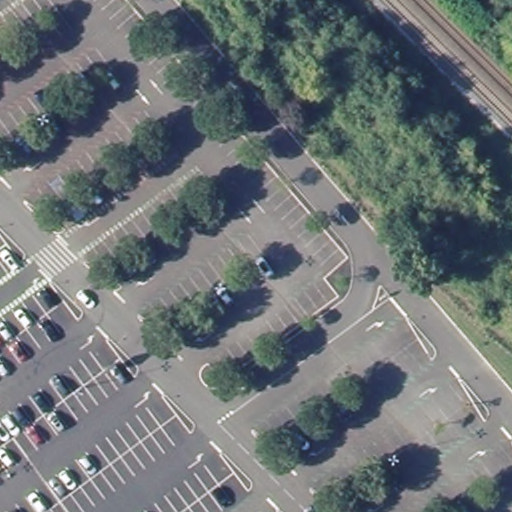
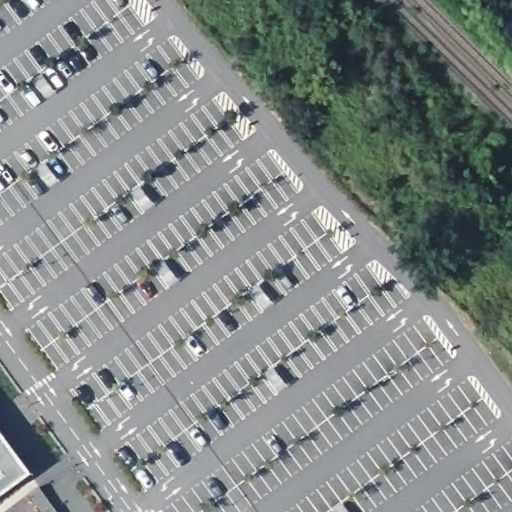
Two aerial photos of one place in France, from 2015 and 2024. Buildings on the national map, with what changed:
new [(28,472),(0,493),(0,435),(28,472)]

